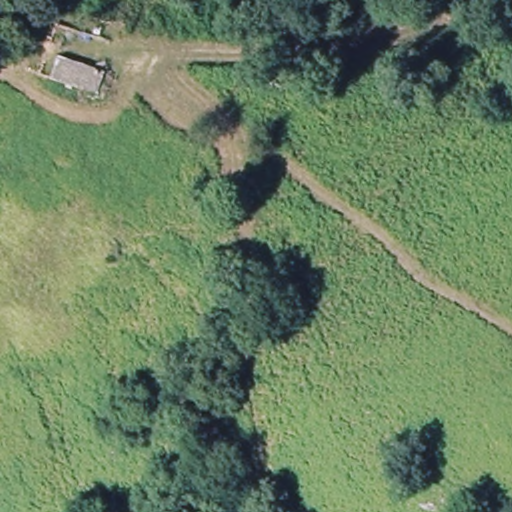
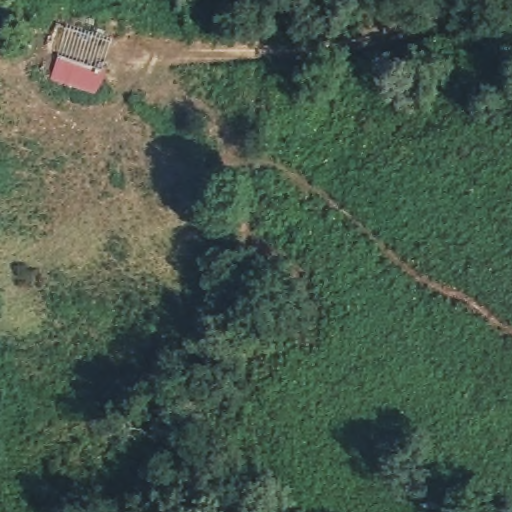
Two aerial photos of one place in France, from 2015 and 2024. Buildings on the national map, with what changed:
unchanged [(98,97),(46,82),(53,60),(104,75),(98,97)]

